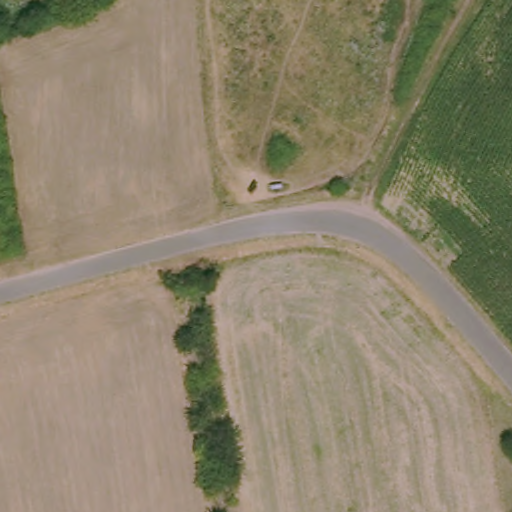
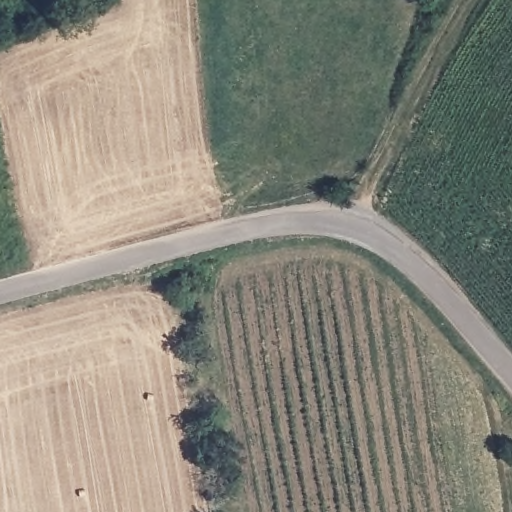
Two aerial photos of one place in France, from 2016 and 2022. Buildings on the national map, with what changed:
[]

